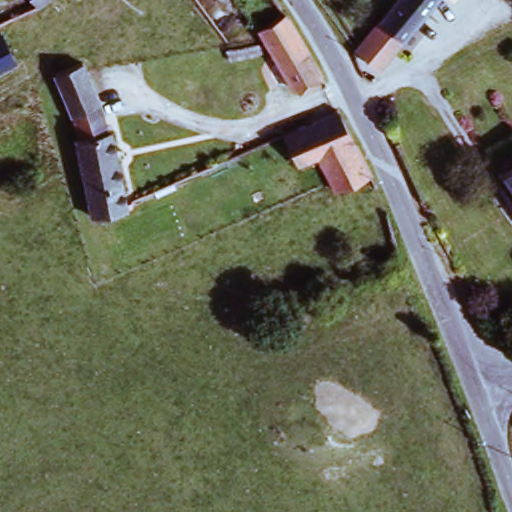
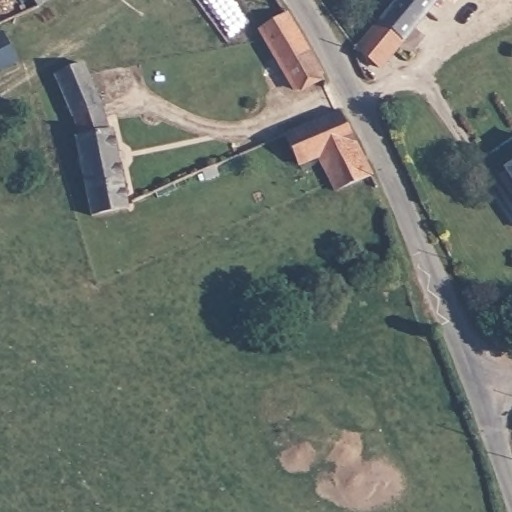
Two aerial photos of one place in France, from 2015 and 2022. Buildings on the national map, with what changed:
unchanged [(38,5),(35,0),(45,0),(38,5)]
unchanged [(401,39),(379,21),(396,0),(432,0),(401,39)]
unchanged [(288,15),(321,73),(295,88),(268,40),(262,29),(288,15)]
unchanged [(1,33),(20,67),(11,72),(0,79),(0,34),(1,33)]
unchanged [(111,130),(124,207),(88,215),(73,137),(81,136),(76,110),(71,109),(53,74),(80,62),(85,72),(104,101),(99,106),(105,131),(111,130)]
unchanged [(316,157),(297,165),(283,134),(335,109),(368,173),(351,181),(332,190),(328,182),(316,157)]
unchanged [(512,187),(502,171),(512,164),(512,187)]
unchanged [(490,337),(476,308),(487,304),(502,335),(490,337)]

